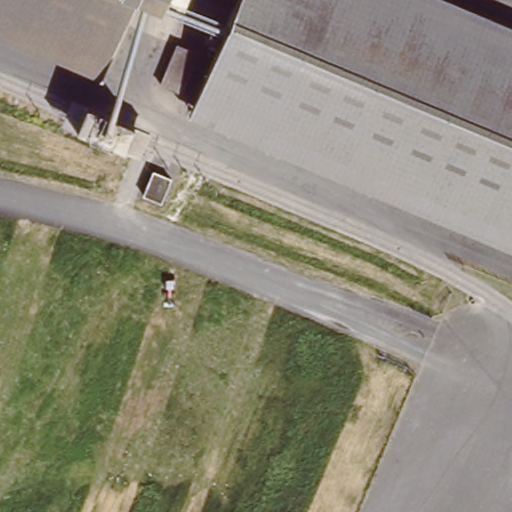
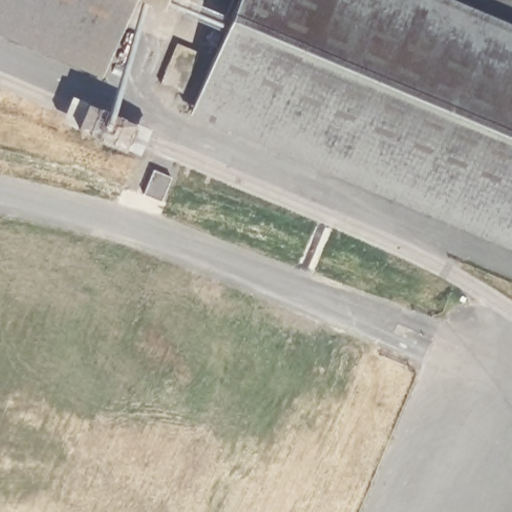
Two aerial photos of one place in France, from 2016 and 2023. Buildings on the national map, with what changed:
unchanged [(100,76),(0,31),(0,0),(133,0),(100,76)]
unchanged [(157,11),(135,0),(162,0),(157,11)]
unchanged [(187,106),(234,0),(452,0),(512,27),(512,252),(187,106)]
unchanged [(203,52),(184,93),(160,82),(178,41),(203,52)]
unchanged [(155,205),(138,197),(152,172),(167,180),(155,205)]

